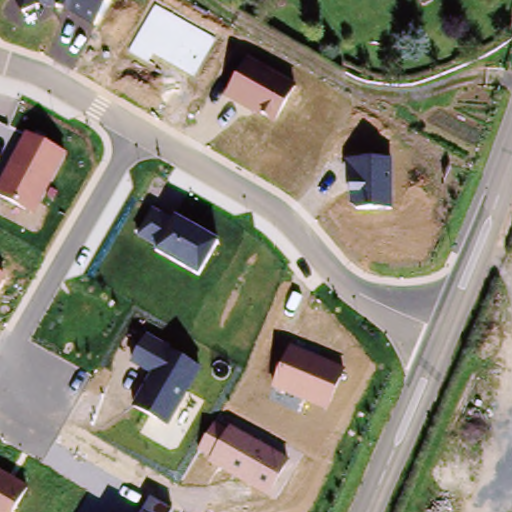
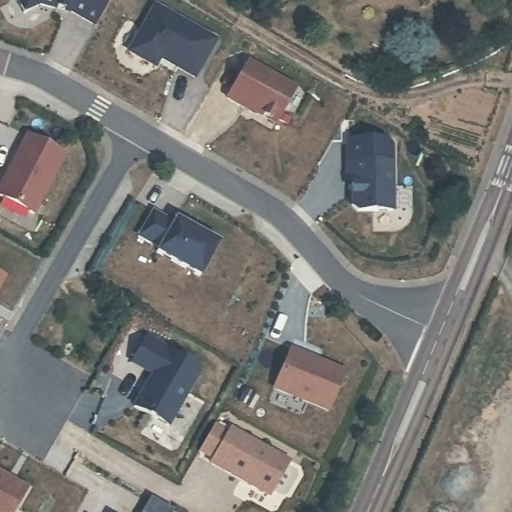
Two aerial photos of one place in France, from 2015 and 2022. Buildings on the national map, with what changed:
unchanged [(93,26),(72,11),(42,5),(24,14),(16,0),(109,0),(93,26)]
new [(219,39),(194,80),(161,60),(156,69),(126,52),(154,3),(219,39)]
unchanged [(276,127),(226,101),(248,60),(297,88),(276,127)]
unchanged [(37,217),(0,198),(0,183),(26,134),(67,155),(37,217)]
unchanged [(392,161),(392,210),(350,212),(349,161),(392,161)]
unchanged [(201,278),(135,243),(156,207),(219,238),(201,278)]
unchanged [(0,287),(0,271),(7,275),(0,287)]
unchanged [(133,408),(152,375),(129,361),(146,333),(202,367),(169,428),(133,408)]
unchanged [(328,413),(272,392),(290,348),(346,371),(328,413)]
unchanged [(270,499),(196,457),(218,419),(290,461),(270,499)]
unchanged [(0,512),(0,468),(30,485),(13,512),(0,512)]
unchanged [(173,510),(172,512),(142,512),(150,499),(173,510)]

